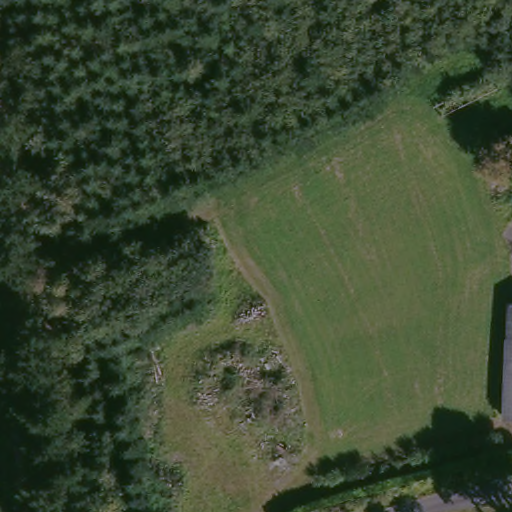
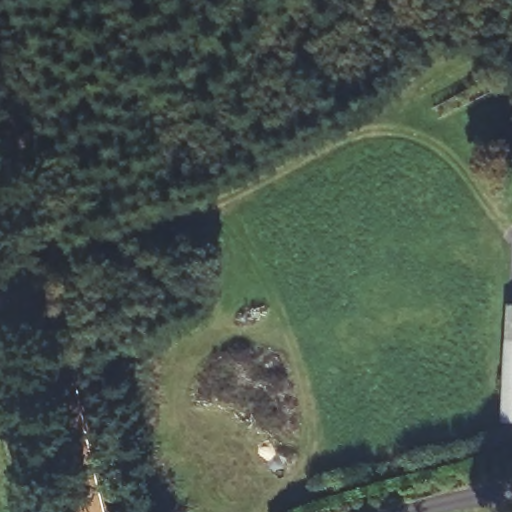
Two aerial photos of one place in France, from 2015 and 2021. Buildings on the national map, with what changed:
unchanged [(512,425),(497,424),(503,304),(512,304),(512,425)]

